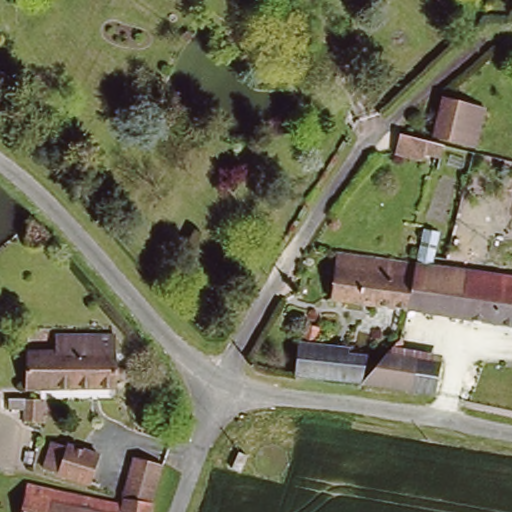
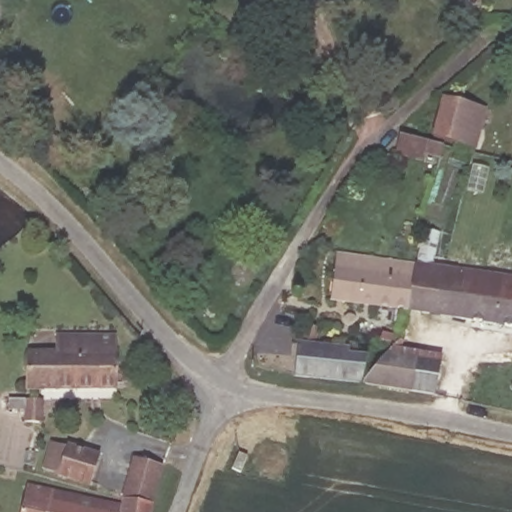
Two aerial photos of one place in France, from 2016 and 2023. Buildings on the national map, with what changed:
unchanged [(482,104),(475,144),(432,135),(439,96),(482,104)]
unchanged [(423,154),(422,162),(392,155),(396,135),(425,142),(442,146),(439,159),(423,154)]
unchanged [(404,310),(414,257),(420,242),(427,227),(440,232),(435,246),(429,260),(512,276),(512,326),(404,310)]
unchanged [(328,299),(331,252),(414,257),(404,310),(328,299)]
unchanged [(306,343),(311,344),(314,326),(324,327),(322,345),(356,350),(357,344),(374,347),(373,357),(370,357),(367,381),(299,372),(306,343)]
unchanged [(391,351),(404,336),(409,341),(400,352),(440,358),(435,392),(367,381),(391,351)]
unchanged [(112,367),(124,367),(124,381),(112,381),(112,387),(25,388),(25,352),(67,352),(66,337),(112,337),(112,367)]
unchanged [(39,420),(20,419),(22,407),(6,407),(8,397),(24,397),(42,397),(39,420)]
unchanged [(95,453),(84,482),(55,472),(65,442),(95,453)]
unchanged [(117,497),(122,460),(156,466),(150,503),(120,497),(117,497)]
unchanged [(119,504),(120,497),(150,503),(148,512),(18,512),(23,482),(119,504)]

